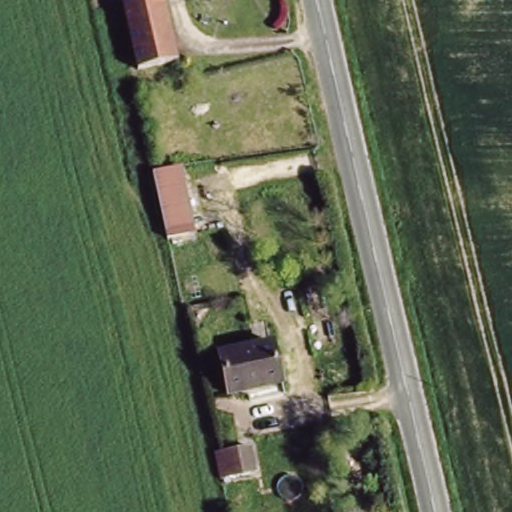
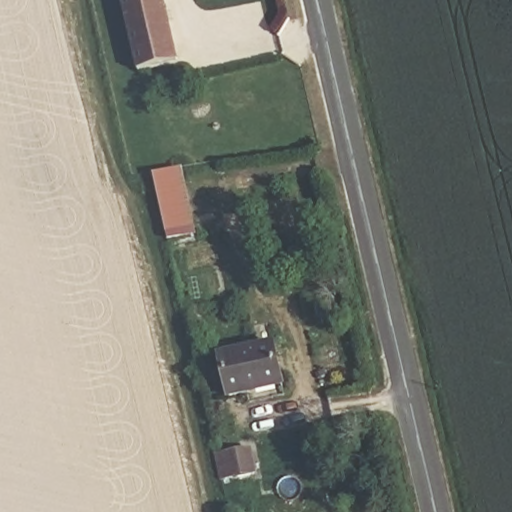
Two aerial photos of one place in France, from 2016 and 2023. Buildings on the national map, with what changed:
unchanged [(168,0),(183,62),(138,72),(119,0),(168,0)]
unchanged [(193,221),(167,229),(154,171),(169,167),(182,165),(193,221)]
unchanged [(271,339),(282,381),(229,395),(218,353),(271,339)]
unchanged [(251,442),(257,468),(221,476),(216,451),(251,442)]

